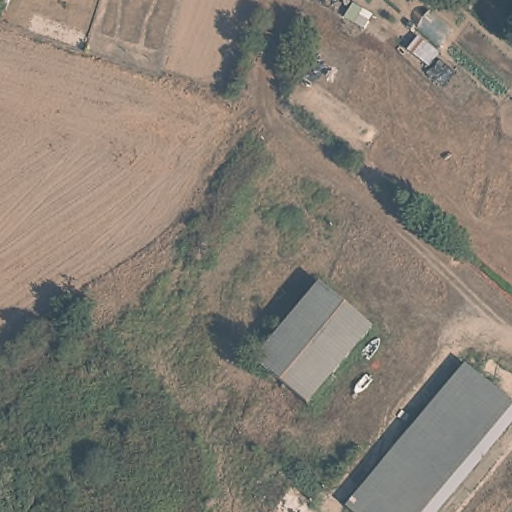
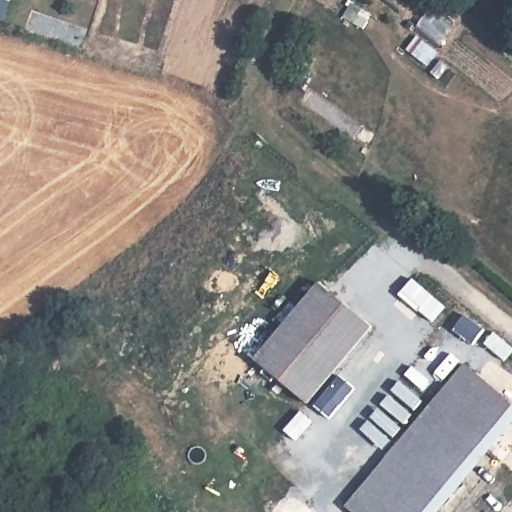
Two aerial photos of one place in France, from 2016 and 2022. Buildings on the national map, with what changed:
unchanged [(302,415),(252,375),(337,276),(385,319),(302,415)]
unchanged [(350,512),(343,506),(466,363),(512,400),(512,412),(425,512),(350,512)]

